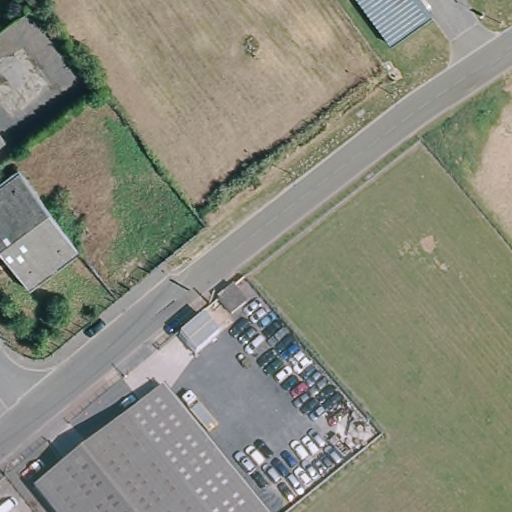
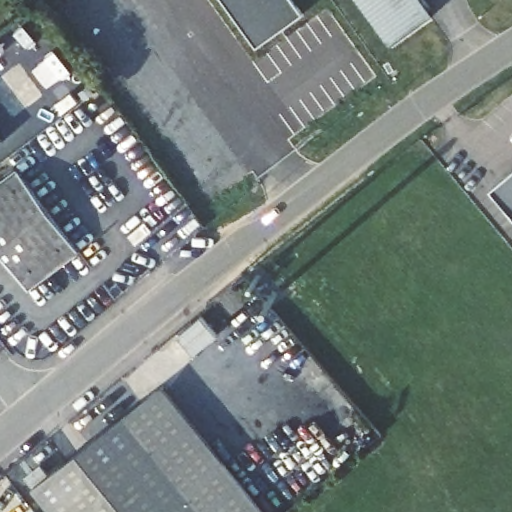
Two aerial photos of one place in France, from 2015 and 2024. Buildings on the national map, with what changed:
new [(226,0),(292,0),(302,14),(258,45),(226,0)]
unchanged [(440,14),(400,43),(368,0),(429,0),(440,14)]
unchanged [(0,148),(0,138),(5,145),(0,148)]
unchanged [(0,186),(23,168),(85,250),(37,287),(0,239),(0,186)]
new [(512,169),(512,210),(492,186),(512,169)]
unchanged [(245,285),(258,301),(243,314),(230,297),(245,285)]
unchanged [(175,406),(263,512),(196,512),(136,438),(175,406)]
unchanged [(136,438),(196,512),(103,512),(82,484),(136,438)]
unchanged [(48,512),(82,484),(103,512),(48,512)]

